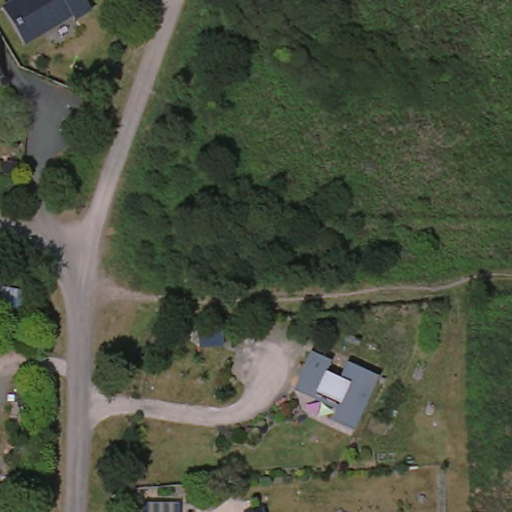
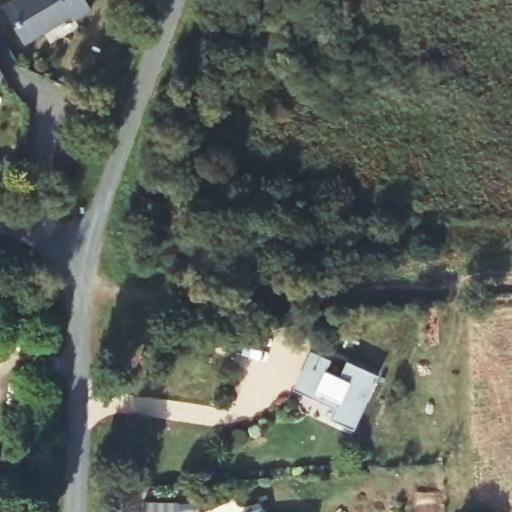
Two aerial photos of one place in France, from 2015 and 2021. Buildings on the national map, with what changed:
unchanged [(1,4),(9,0),(81,0),(88,12),(22,45),(1,4)]
unchanged [(20,315),(0,311),(0,294),(24,299),(20,315)]
unchanged [(334,361),(329,372),(343,378),(351,362),(382,377),(357,431),(334,420),(343,402),(320,391),(318,397),(299,388),(311,364),(308,363),(314,351),(334,361)]
unchanged [(181,504),(181,512),(149,512),(149,504),(181,504)]

